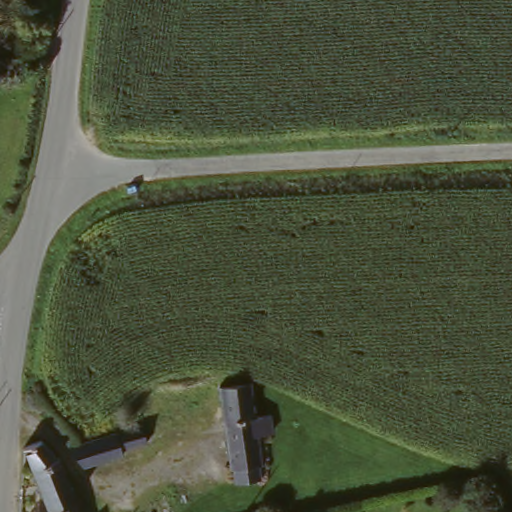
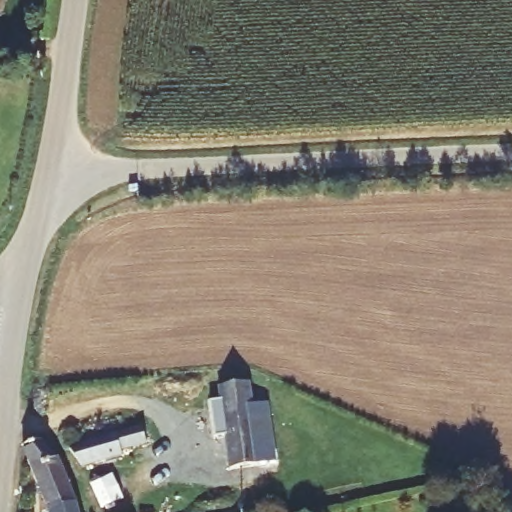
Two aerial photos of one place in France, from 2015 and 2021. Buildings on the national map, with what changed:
unchanged [(257,477),(259,490),(243,495),(239,482),(233,483),(215,416),(210,397),(216,395),(239,388),(263,475),(257,477)]
unchanged [(148,441),(124,449),(126,457),(83,472),(75,448),(131,428),(139,425),(143,424),(146,435),(148,441)]
unchanged [(45,474),(39,457),(34,444),(51,437),(62,467),(66,466),(79,501),(84,512),(59,512),(58,507),(45,474)]

